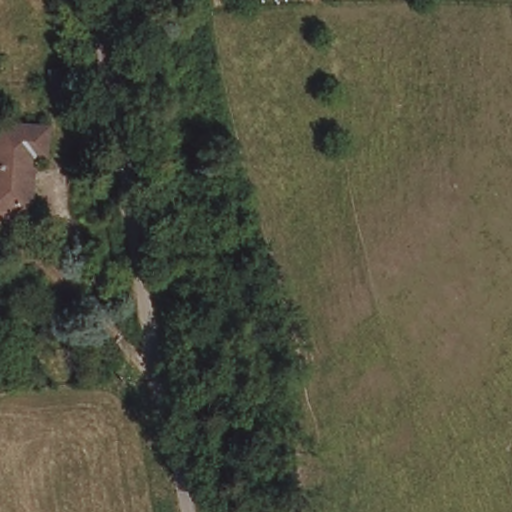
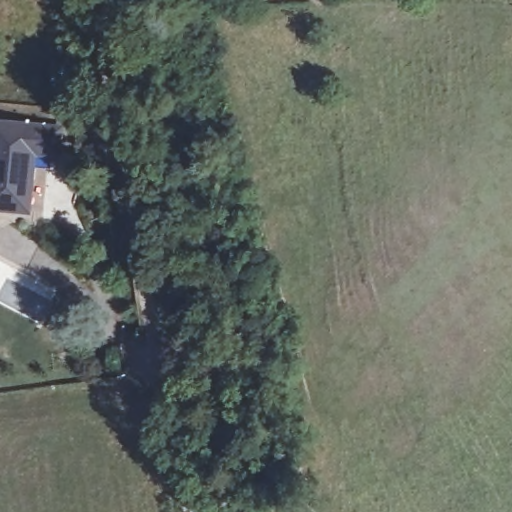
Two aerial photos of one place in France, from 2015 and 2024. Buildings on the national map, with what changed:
unchanged [(44,128),(43,149),(32,150),(29,210),(9,209),(0,204),(0,126),(43,125),(44,128)]

